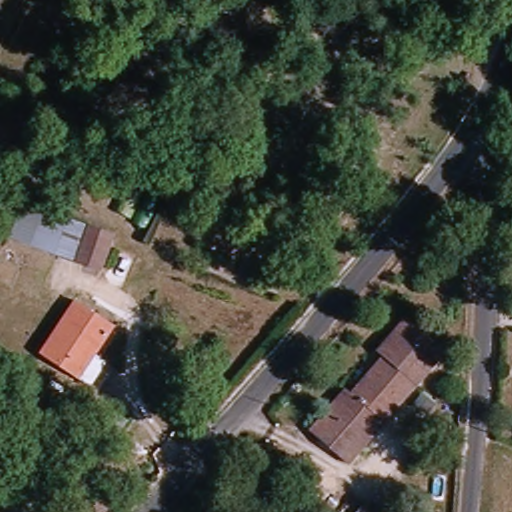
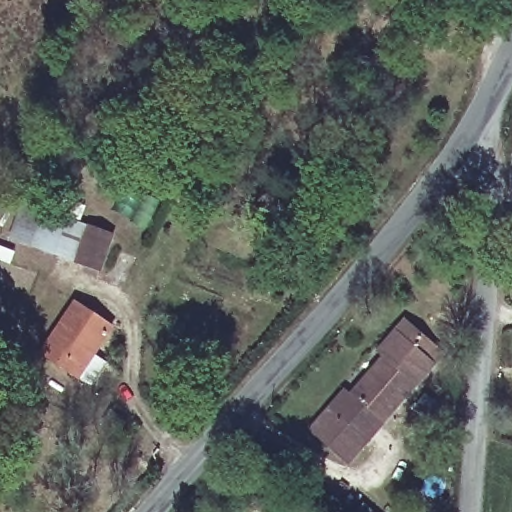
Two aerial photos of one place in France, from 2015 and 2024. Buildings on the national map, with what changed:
unchanged [(5,238),(18,202),(112,237),(98,273),(5,238)]
unchanged [(50,360),(88,306),(120,329),(81,384),(50,360)]
unchanged [(440,368),(354,465),(313,430),(349,387),(354,392),(388,357),(382,351),(399,330),(440,368)]
unchanged [(361,503),(373,512),(354,512),(361,503)]

